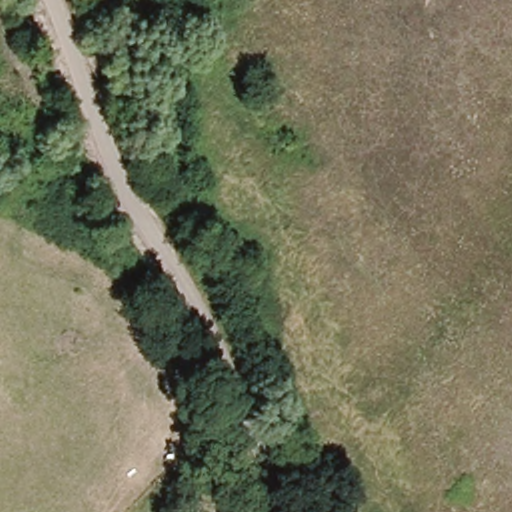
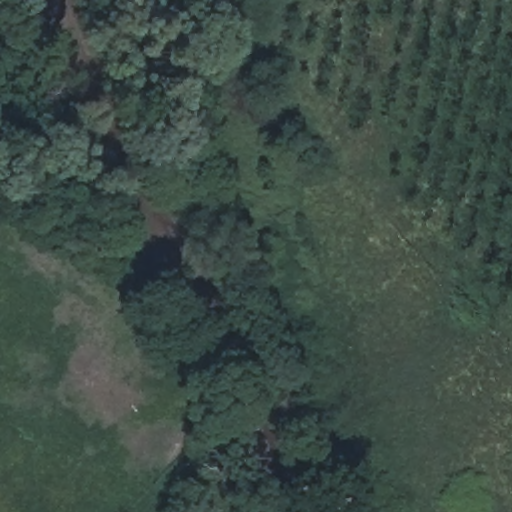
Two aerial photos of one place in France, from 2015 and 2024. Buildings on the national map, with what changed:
[]

